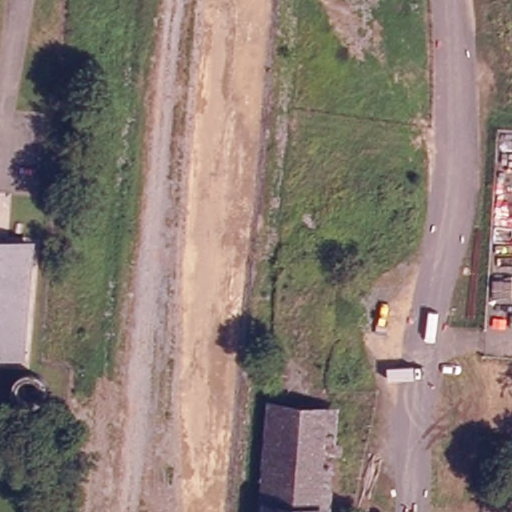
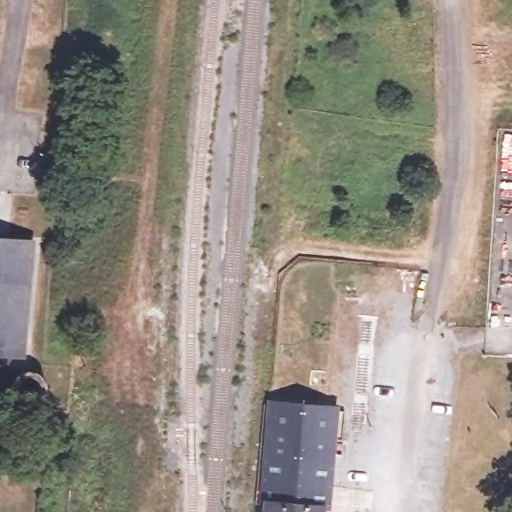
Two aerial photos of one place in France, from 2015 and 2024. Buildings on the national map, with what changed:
unchanged [(37,247),(28,357),(0,355),(0,243),(37,247)]
unchanged [(322,512),(321,512),(269,512),(270,507),(279,407),(330,412),(321,512),(322,512)]

